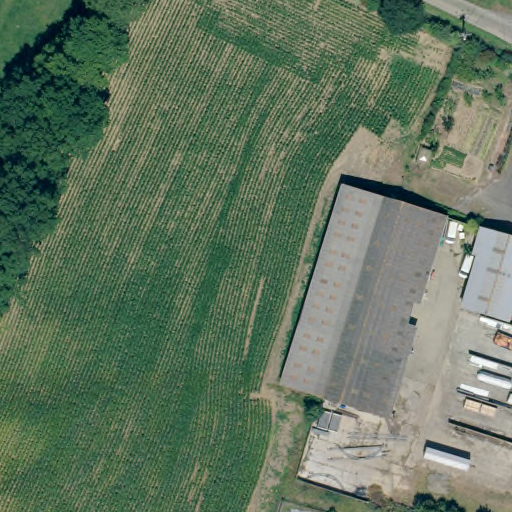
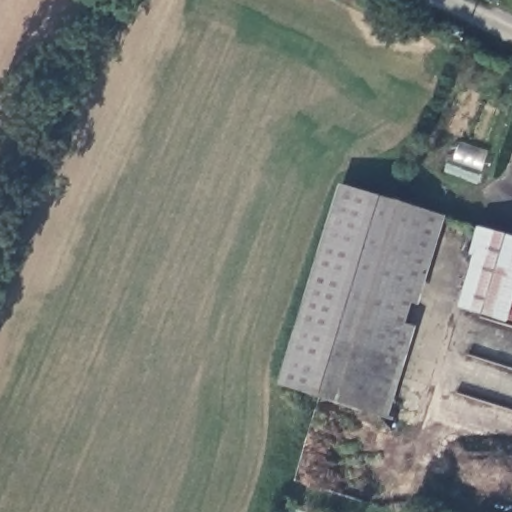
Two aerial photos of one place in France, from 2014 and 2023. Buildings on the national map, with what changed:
unchanged [(475,55),(475,64),(464,66),(463,56),(475,55)]
unchanged [(277,382),(347,182),(373,192),(306,392),(277,382)]
unchanged [(383,195),(313,393),(306,392),(373,192),(383,195)]
unchanged [(439,216),(409,302),(373,413),(313,393),(383,195),(439,216)]
unchanged [(478,233),(512,244),(512,275),(475,262),(470,262),(478,233)]
unchanged [(459,312),(475,262),(512,275),(512,289),(501,326),(459,312)]
unchanged [(428,308),(387,419),(373,413),(409,302),(428,308)]
unchanged [(512,321),(510,321),(512,316),(512,321)]

